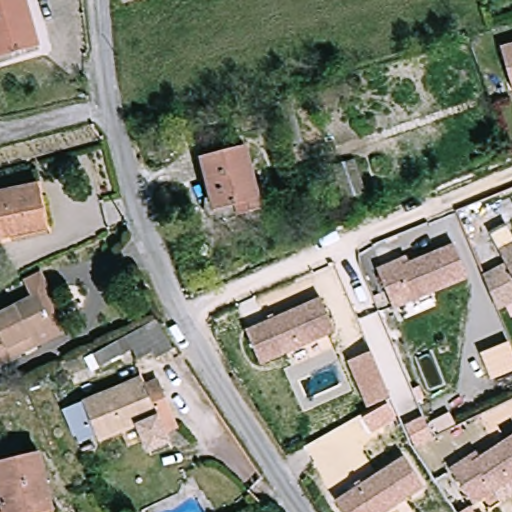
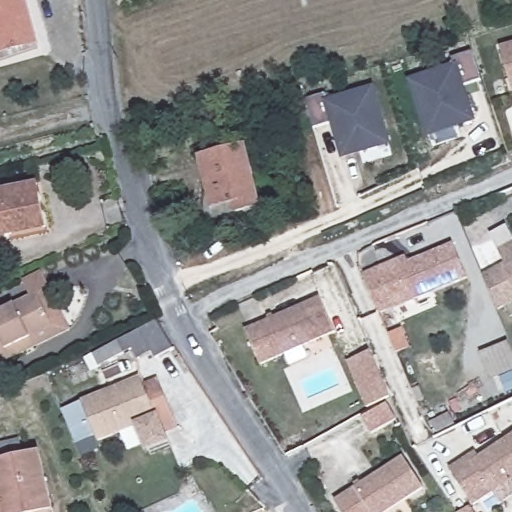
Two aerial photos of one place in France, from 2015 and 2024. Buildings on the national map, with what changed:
unchanged [(0,56),(0,0),(24,0),(38,46),(0,56)]
unchanged [(512,90),(510,82),(500,48),(512,44),(512,90)]
new [(410,80),(454,65),(452,59),(472,53),(480,80),(466,85),(476,121),(428,137),(410,80)]
new [(329,122),(314,127),(306,101),(325,95),(327,100),(374,85),(392,145),(342,160),(329,122)]
unchanged [(301,144),(286,148),(274,106),(289,101),(301,144)]
unchanged [(202,159),(246,148),(261,210),(236,216),(216,221),(214,211),(202,159)]
unchanged [(46,230),(0,240),(0,193),(36,185),(46,230)]
unchanged [(504,260),(491,233),(509,225),(512,233),(512,301),(495,308),(480,271),(504,260)]
unchanged [(398,258),(401,264),(452,243),(466,277),(392,307),(376,267),(398,258)]
unchanged [(68,322),(45,333),(50,342),(11,361),(0,366),(0,314),(51,290),(68,322)]
unchanged [(323,301),(337,335),(262,366),(248,332),(323,301)]
unchanged [(92,353),(102,348),(158,318),(172,348),(155,358),(151,351),(136,360),(131,349),(109,360),(98,365),(92,353)]
new [(512,345),(512,375),(496,381),(486,355),(512,345)]
unchanged [(352,362),(375,353),(394,400),(371,409),(352,362)]
unchanged [(140,378),(144,388),(157,382),(175,426),(162,431),(166,441),(147,450),(137,426),(98,442),(79,450),(61,410),(81,402),(140,378)]
unchanged [(428,427),(455,415),(453,410),(476,400),(482,413),(459,424),(432,436),(433,440),(415,447),(412,441),(408,432),(427,425),(428,427)]
new [(393,403),(402,419),(375,434),(366,418),(393,403)]
unchanged [(469,455),(473,461),(512,435),(512,479),(473,505),(449,470),(469,455)]
unchanged [(23,456),(39,452),(53,511),(48,512),(3,512),(0,499),(0,443),(19,439),(23,456)]
unchanged [(403,460),(423,491),(390,512),(339,512),(334,504),(403,460)]

